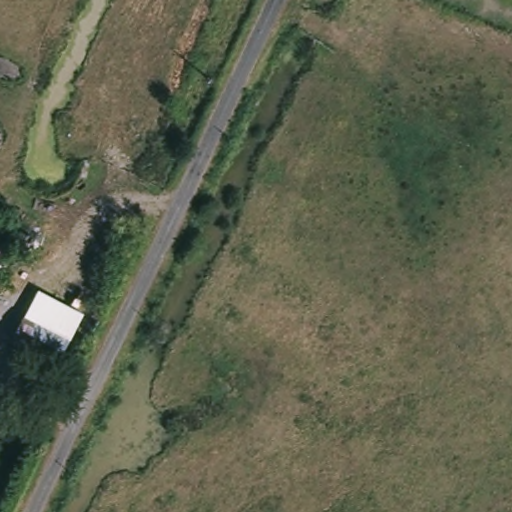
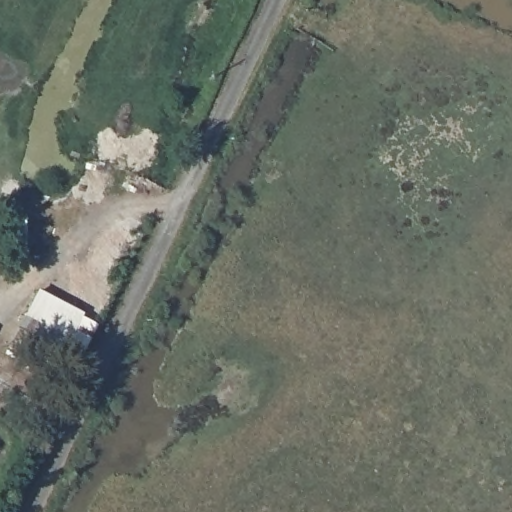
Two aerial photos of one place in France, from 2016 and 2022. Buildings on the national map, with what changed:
unchanged [(59,365),(10,341),(23,315),(72,338),(59,365)]

